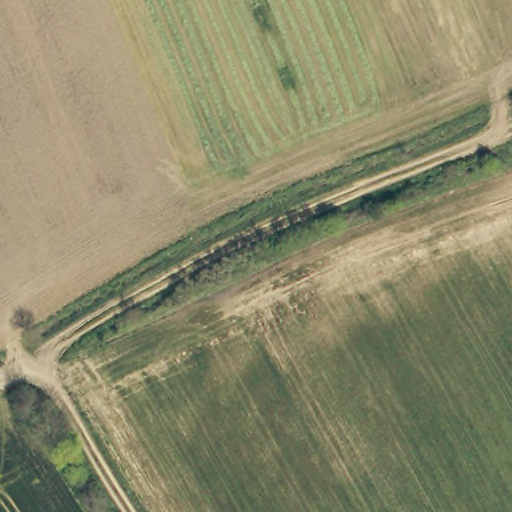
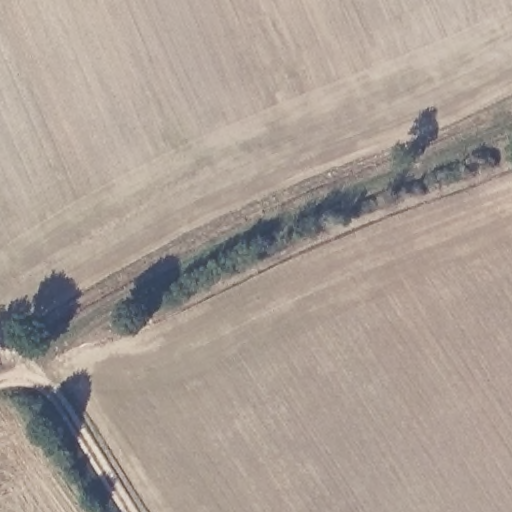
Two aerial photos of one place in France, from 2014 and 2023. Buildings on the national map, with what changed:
[]

